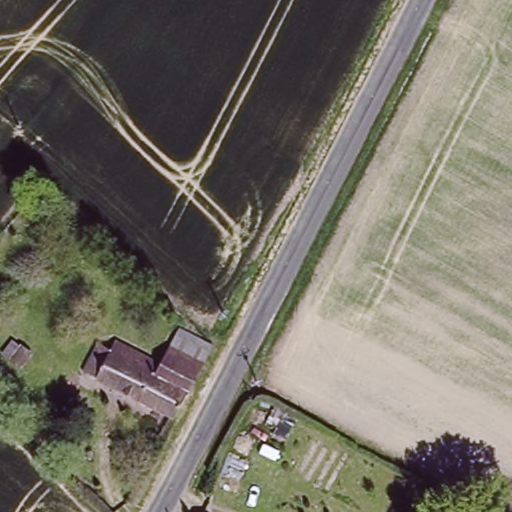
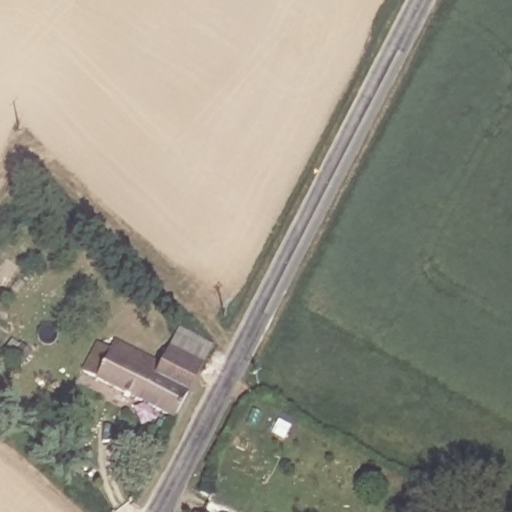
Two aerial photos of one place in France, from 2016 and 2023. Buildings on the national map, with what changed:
unchanged [(159,378),(164,369),(173,352),(179,339),(211,356),(204,368),(191,395),(159,378)]
unchanged [(191,395),(176,423),(88,376),(100,348),(113,355),(118,345),(153,363),(164,369),(159,378),(191,395)]

